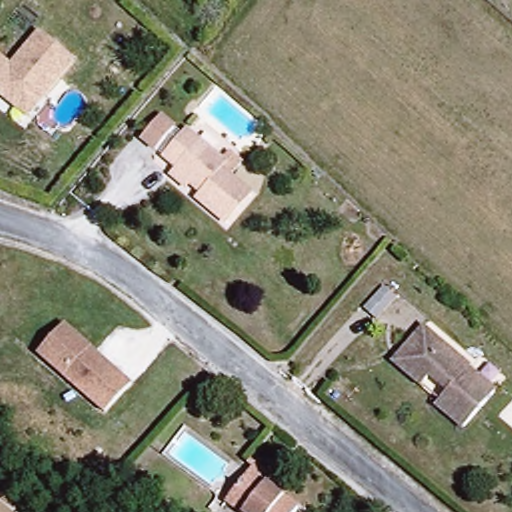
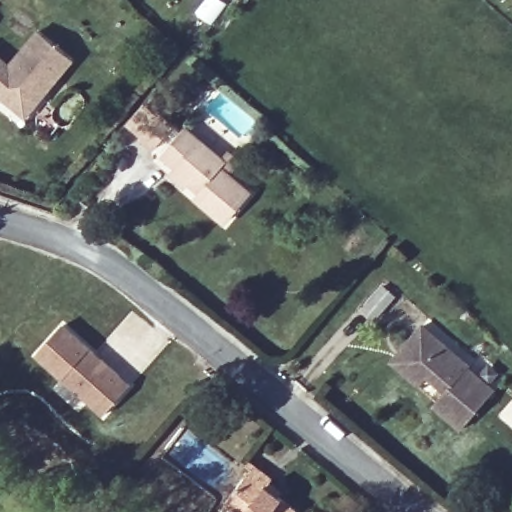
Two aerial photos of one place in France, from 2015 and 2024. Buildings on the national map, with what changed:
unchanged [(0,55),(14,66),(40,31),(75,59),(30,115),(0,91),(0,55)]
unchanged [(184,130),(164,153),(150,140),(169,118),(184,130)]
unchanged [(254,192),(229,221),(201,196),(209,187),(205,183),(201,187),(167,158),(192,129),(232,163),(227,169),(254,192)]
unchanged [(390,325),(379,316),(398,293),(409,302),(390,325)]
unchanged [(468,424),(440,401),(452,386),(436,373),(431,379),(428,383),(397,357),(417,335),(428,322),(474,361),(473,363),(499,386),(468,424)]
unchanged [(128,383),(103,413),(34,355),(59,325),(128,383)]
unchanged [(300,507),(296,512),(241,512),(227,501),(249,469),(300,507)]

